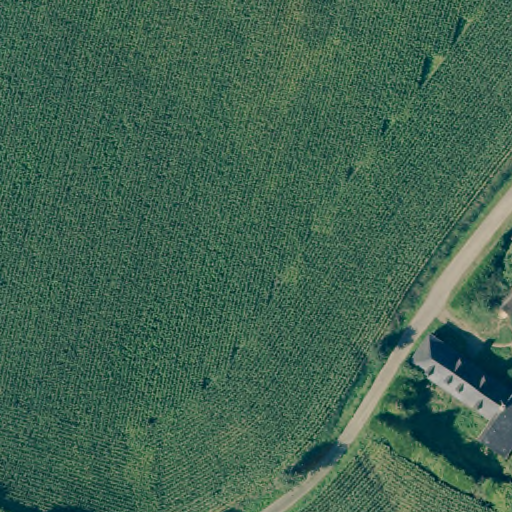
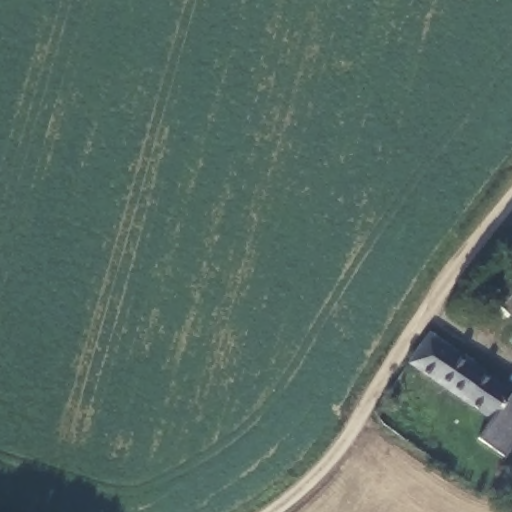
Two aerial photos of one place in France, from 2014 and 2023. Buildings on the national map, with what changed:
unchanged [(512,278),(512,295),(503,307),(478,288),(495,266),(512,278)]
unchanged [(493,417),(412,363),(430,333),(508,386),(512,389),(512,445),(506,453),(481,437),(493,417)]

